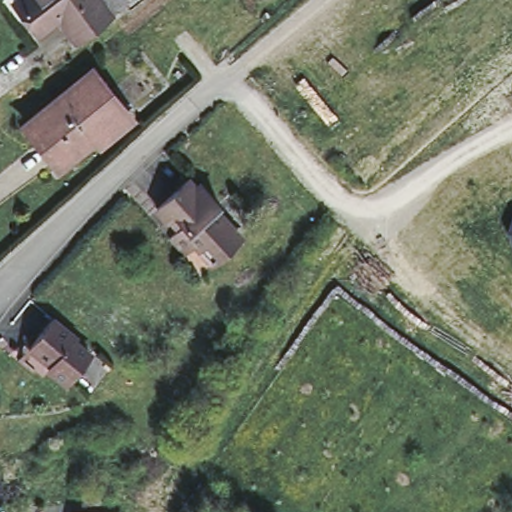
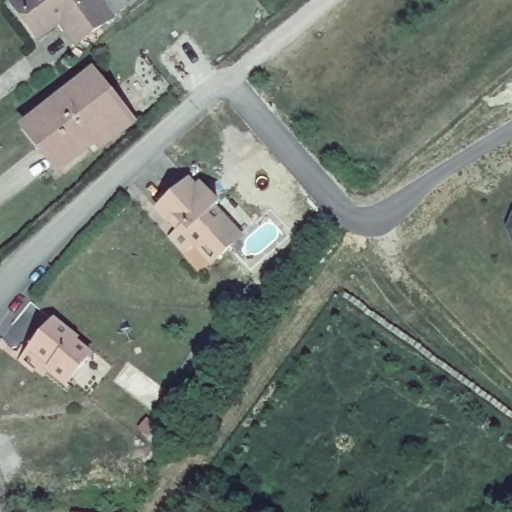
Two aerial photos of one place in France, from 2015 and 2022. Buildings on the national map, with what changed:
unchanged [(18,0),(120,0),(123,5),(106,18),(71,44),(59,26),(57,22),(39,36),(16,1),(18,0)]
unchanged [(18,127),(25,121),(87,69),(106,95),(44,149),(40,143),(33,148),(18,127)]
unchanged [(125,122),(97,145),(92,137),(56,166),(44,149),(106,95),(125,122)]
unchanged [(232,246),(212,265),(195,246),(185,255),(170,237),(176,232),(157,210),(187,181),(195,190),(199,186),(217,205),(213,210),(228,225),(240,239),(232,246)]
unchanged [(506,229),(512,218),(512,242),(506,229)]
unchanged [(77,337),(75,340),(90,355),(64,382),(47,365),(50,361),(32,342),(57,316),(77,337)]

